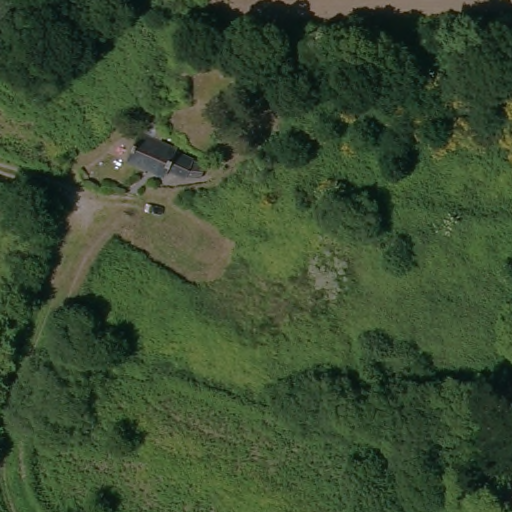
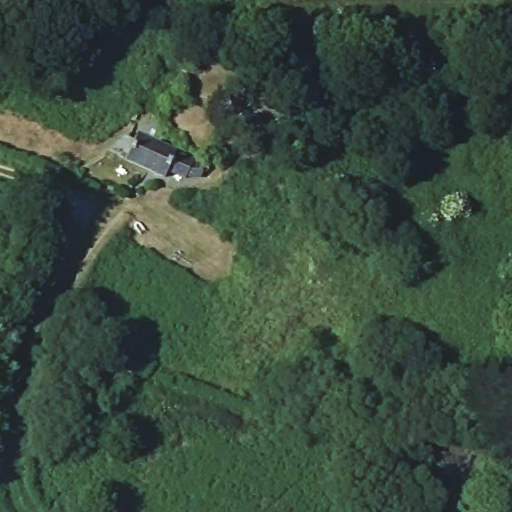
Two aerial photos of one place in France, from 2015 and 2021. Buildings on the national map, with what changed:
unchanged [(176,152),(194,161),(188,176),(169,167),(165,175),(125,156),(138,129),(178,148),(176,152)]

